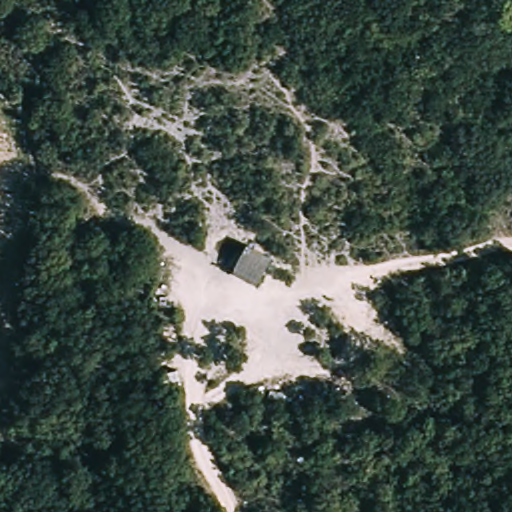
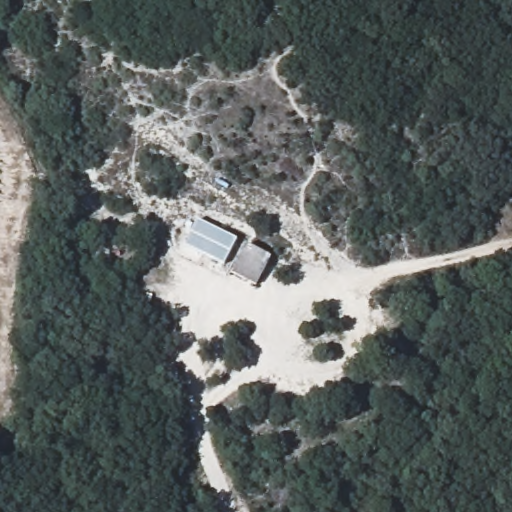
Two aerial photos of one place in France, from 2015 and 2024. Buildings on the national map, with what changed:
new [(198,220),(236,240),(223,264),(185,247),(198,220)]
unchanged [(232,272),(247,244),(274,257),(257,285),(232,272)]

